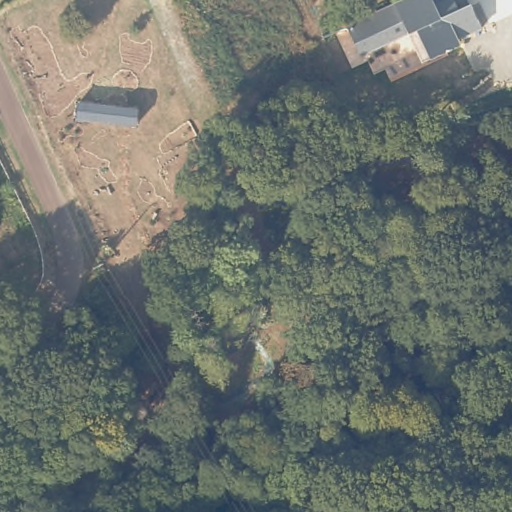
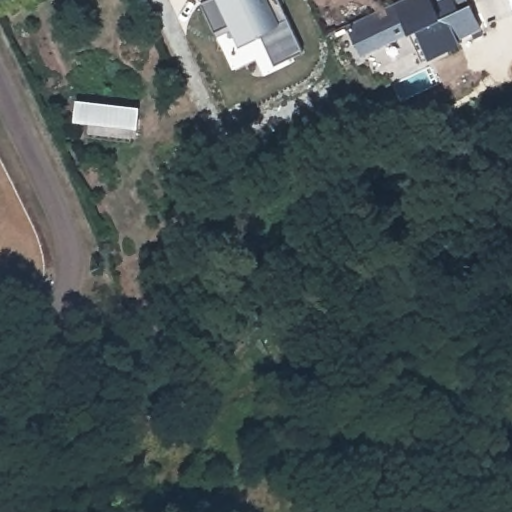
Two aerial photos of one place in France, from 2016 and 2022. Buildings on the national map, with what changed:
new [(205,0),(278,0),(302,52),(274,64),(260,34),(240,42),(230,23),(215,31),(201,2),(205,0)]
unchanged [(396,3),(402,0),(469,0),(472,5),(481,29),(458,40),(460,45),(432,59),(423,62),(410,33),(362,56),(347,27),(396,3)]
unchanged [(138,126),(77,121),(78,102),(139,109),(138,126)]

